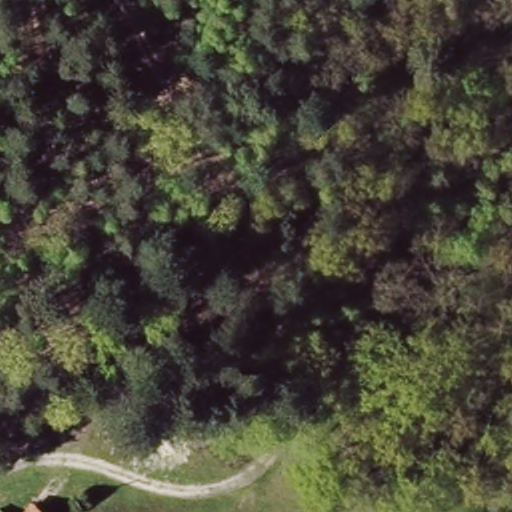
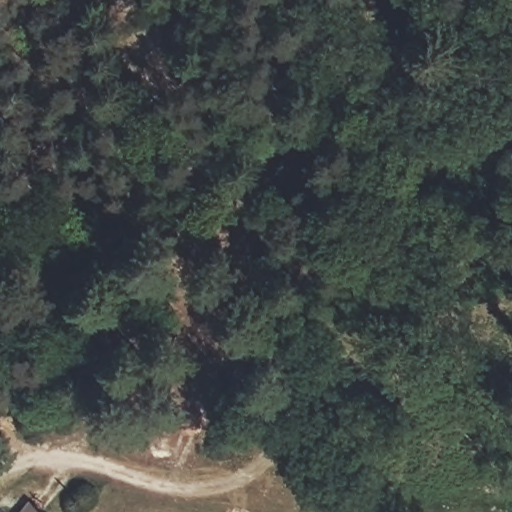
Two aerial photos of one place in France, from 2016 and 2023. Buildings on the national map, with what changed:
unchanged [(49,512),(24,512),(35,499),(49,512)]

